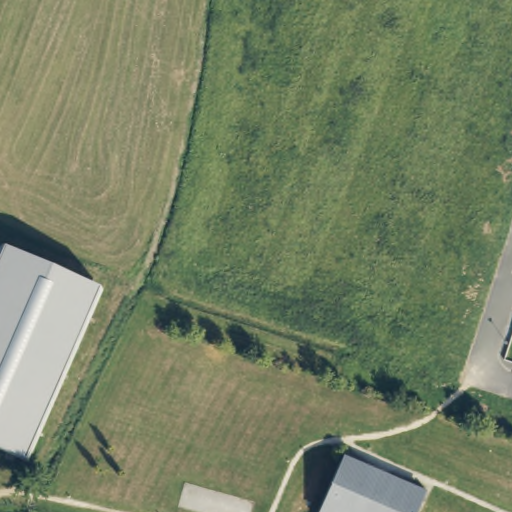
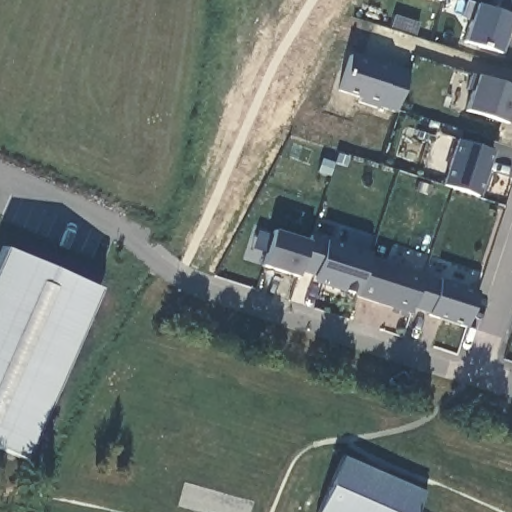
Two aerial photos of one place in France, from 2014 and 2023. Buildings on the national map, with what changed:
new [(443,2),(435,0),(443,0),(443,2)]
new [(506,33),(498,55),(462,44),(474,5),(498,11),(501,0),(512,0),(512,35),(506,33)]
new [(397,113),(381,108),(378,111),(356,104),(357,96),(339,91),(349,54),(409,71),(397,113)]
new [(508,125),(464,110),(475,75),(512,87),(512,110),(508,125)]
new [(479,197),(442,186),(457,139),(493,151),(479,197)]
new [(467,327),(414,309),(412,314),(356,297),(310,282),(312,278),(298,273),(297,278),(261,267),(272,229),(304,240),(306,234),(367,254),(478,292),(467,327)]
unchanged [(100,291),(79,338),(0,300),(0,269),(8,251),(100,291)]
unchanged [(25,459),(0,448),(0,300),(79,338),(25,459)]
unchanged [(423,495),(415,512),(315,512),(339,457),(423,495)]

